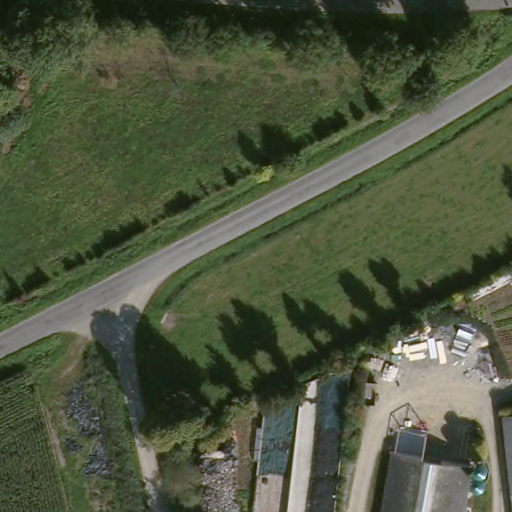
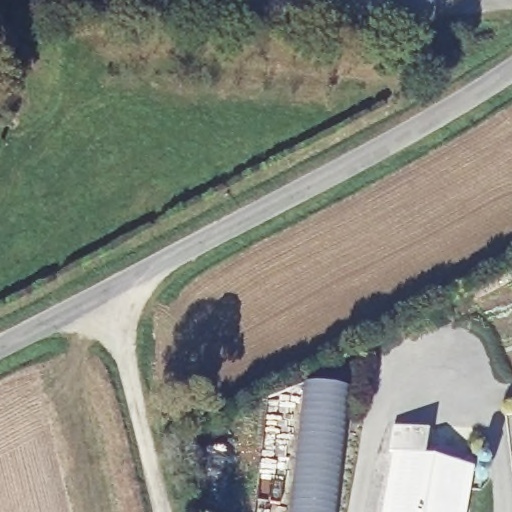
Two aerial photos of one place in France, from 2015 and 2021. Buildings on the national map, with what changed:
new [(334,512),(292,512),(307,385),(348,390),(334,512)]
demolished [(512,506),(502,415),(512,413),(512,506)]
unchanged [(388,457),(392,441),(405,442),(403,458),(466,468),(460,512),(375,512),(383,456),(388,457)]

